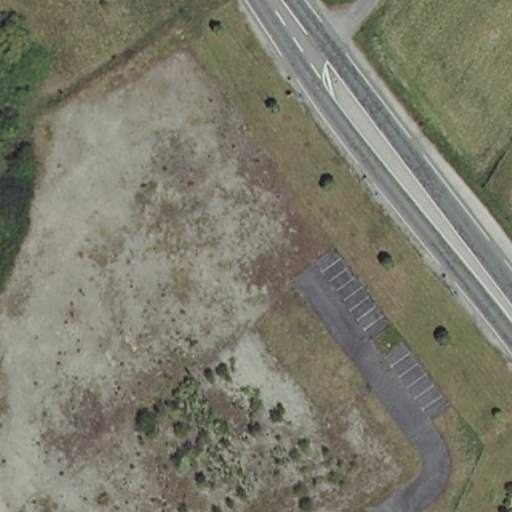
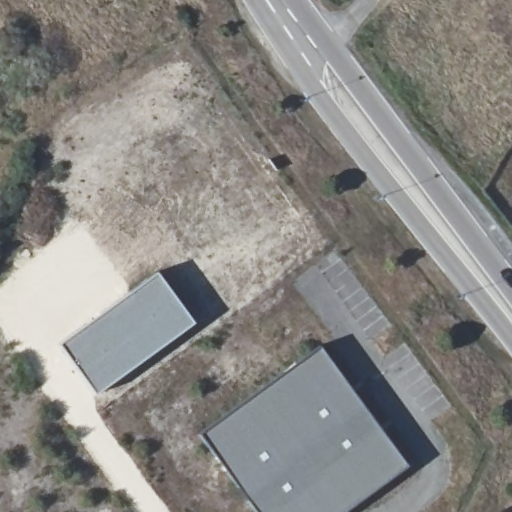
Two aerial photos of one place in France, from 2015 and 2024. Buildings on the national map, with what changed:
new [(155,270),(194,323),(95,396),(57,343),(155,270)]
new [(320,346),(408,466),(345,512),(255,512),(199,435),(320,346)]

